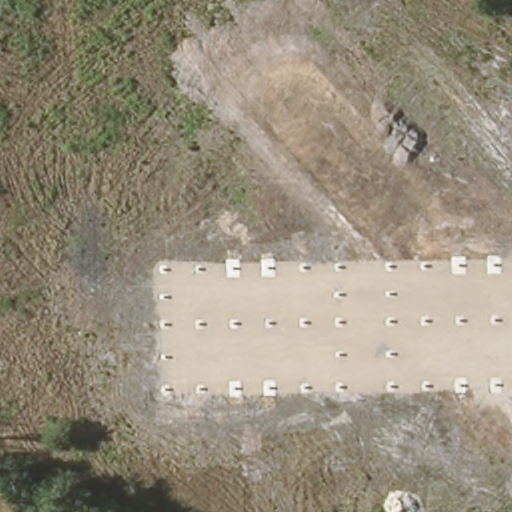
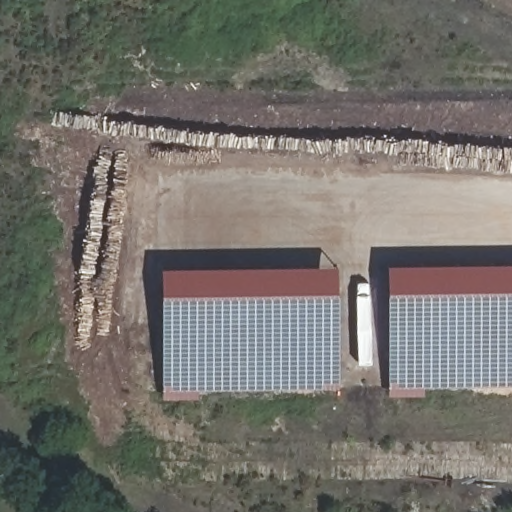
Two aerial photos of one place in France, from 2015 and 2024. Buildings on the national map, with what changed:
new [(390,397),(388,266),(512,264),(512,386),(427,387),(426,396),(390,397)]
new [(164,400),(164,269),(339,267),(340,388),(200,391),(199,400),(164,400)]

